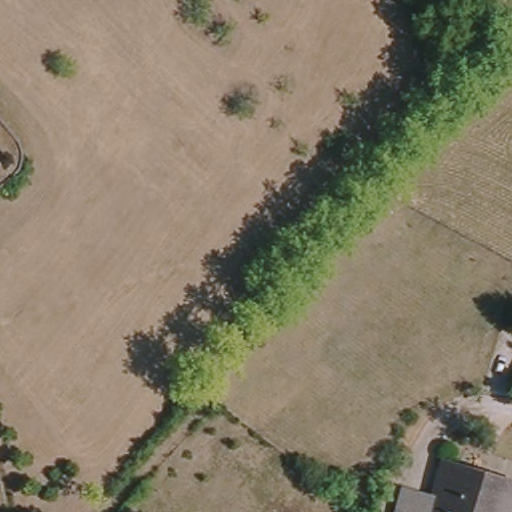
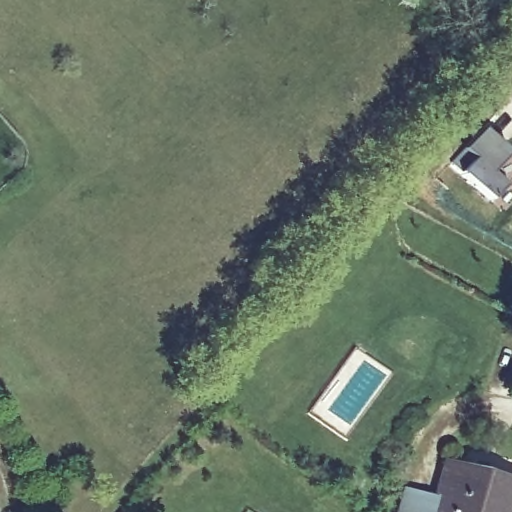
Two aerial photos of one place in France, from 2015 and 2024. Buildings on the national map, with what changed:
new [(512,154),(512,182),(495,201),(454,164),(485,130),(512,154)]
unchanged [(445,466),(512,480),(512,512),(433,512),(437,498),(445,466)]
unchanged [(437,498),(433,512),(392,512),(398,488),(437,498)]

